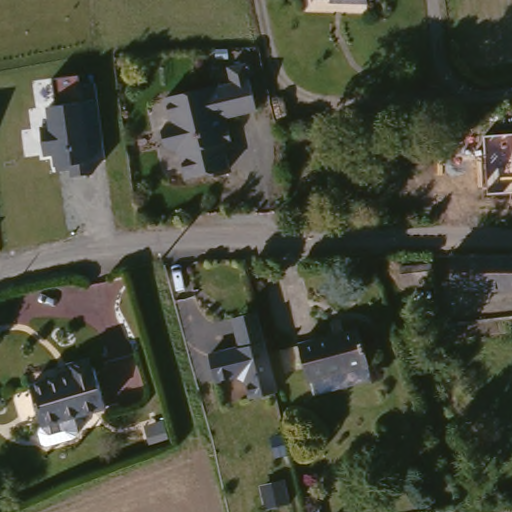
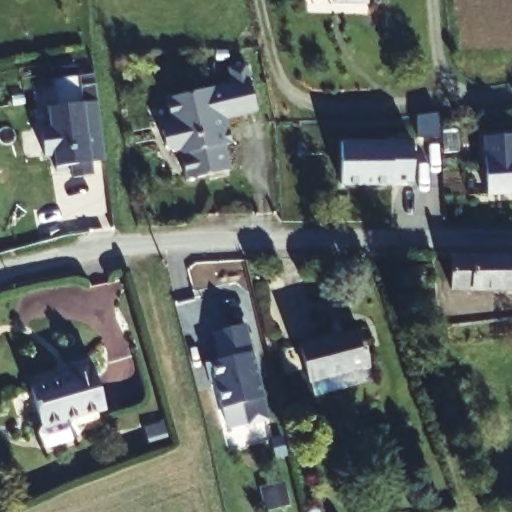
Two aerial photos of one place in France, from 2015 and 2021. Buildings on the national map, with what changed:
unchanged [(225,138),(231,168),(209,172),(208,166),(186,171),(181,145),(180,145),(180,141),(175,141),(167,136),(165,121),(170,114),(175,113),(170,89),(223,79),(223,80),(237,78),(235,63),(252,60),(260,106),(229,111),(231,124),(233,136),(225,138)]
unchanged [(86,102),(94,101),(101,158),(89,161),(90,174),(68,177),(67,169),(54,172),(52,156),(45,156),(40,128),(50,126),(47,108),(56,106),(52,78),(80,74),(86,102)]
unchanged [(512,133),(512,192),(487,194),(482,134),(512,133)]
new [(341,141),(413,141),(413,181),(392,182),(392,184),(341,184),(341,141)]
unchanged [(448,251),(486,251),(512,251),(512,284),(447,284),(445,251),(448,251)]
unchanged [(401,287),(398,269),(430,266),(433,284),(401,287)]
unchanged [(250,398),(245,381),(236,376),(214,383),(206,357),(237,348),(229,319),(252,313),(260,341),(275,390),(250,398)]
unchanged [(295,332),(353,317),(366,368),(309,384),(295,332)]
unchanged [(104,399),(74,410),(78,424),(79,428),(75,431),(49,441),(44,438),(40,427),(42,422),(42,421),(29,379),(69,366),(66,358),(89,351),(104,399)]
unchanged [(165,441),(158,424),(162,423),(167,420),(175,437),(170,439),(165,441)]
unchanged [(267,508),(262,490),(285,484),(290,502),(267,508)]
unchanged [(445,506),(447,512),(425,512),(425,511),(445,506)]
unchanged [(307,510),(317,508),(318,512),(308,512),(307,510)]

